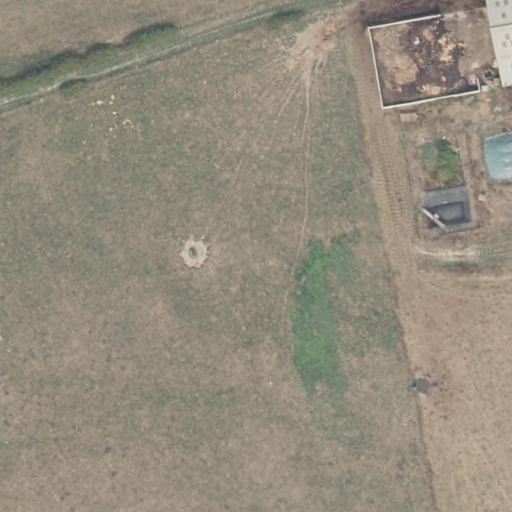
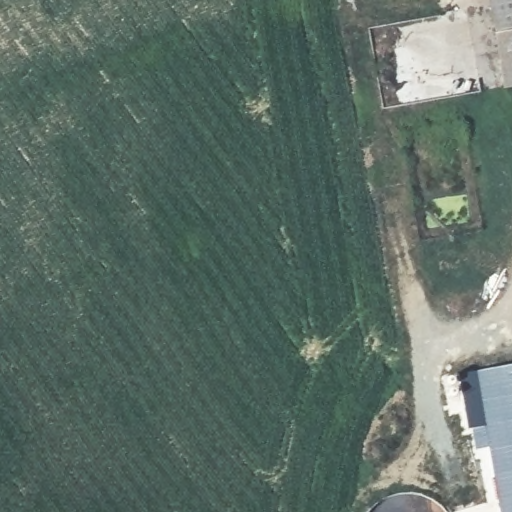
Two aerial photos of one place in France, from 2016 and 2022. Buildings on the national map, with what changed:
unchanged [(504,92),(487,0),(512,0),(512,90),(504,92)]
new [(512,364),(512,512),(498,512),(484,428),(466,431),(457,373),(477,371),(512,364)]

